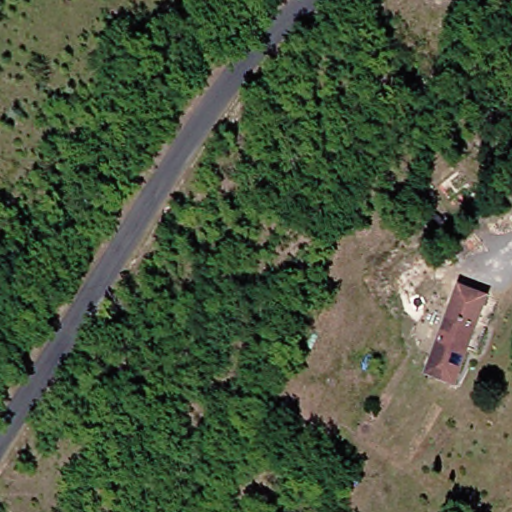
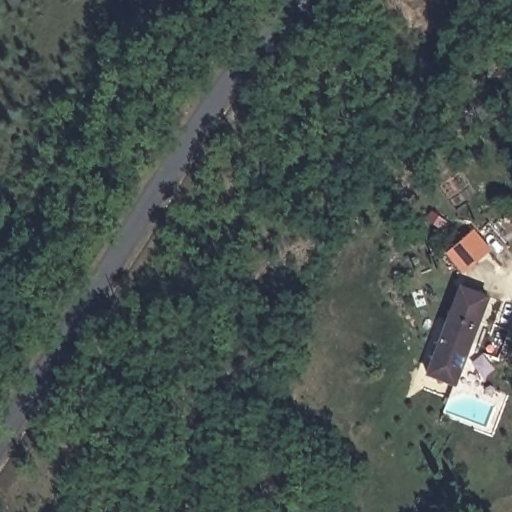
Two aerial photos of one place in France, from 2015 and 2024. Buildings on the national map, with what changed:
unchanged [(492,299),(482,327),(462,385),(432,375),(452,317),(457,318),(465,292),(492,299)]

